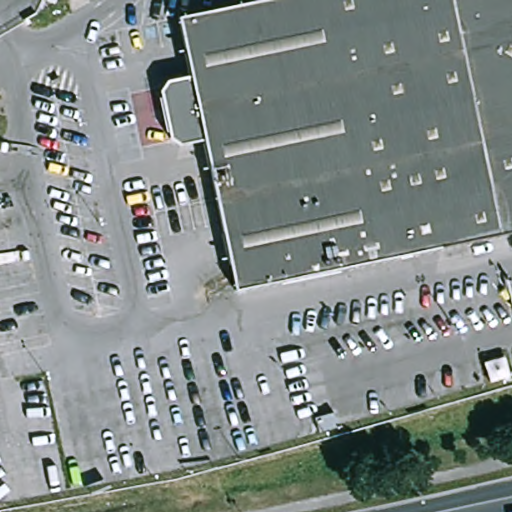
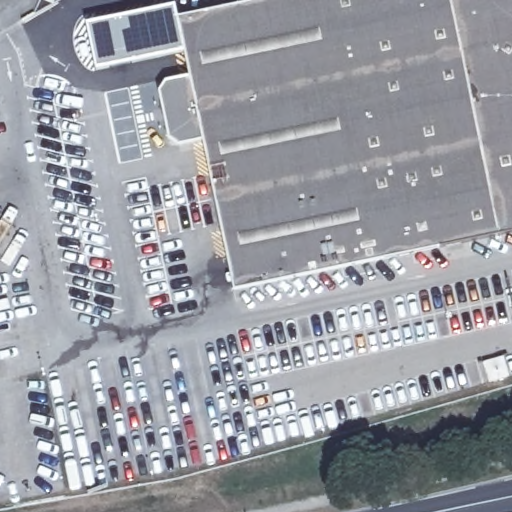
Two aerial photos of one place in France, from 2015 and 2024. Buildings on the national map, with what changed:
unchanged [(237,292),(204,140),(180,145),(169,139),(159,91),(166,80),(190,75),(178,17),(257,0),(512,0),(512,234),(237,292)]
new [(175,3),(178,17),(185,50),(96,69),(95,61),(85,22),(175,3)]

